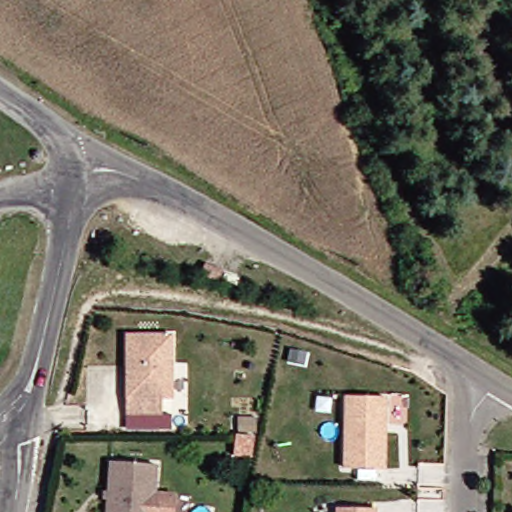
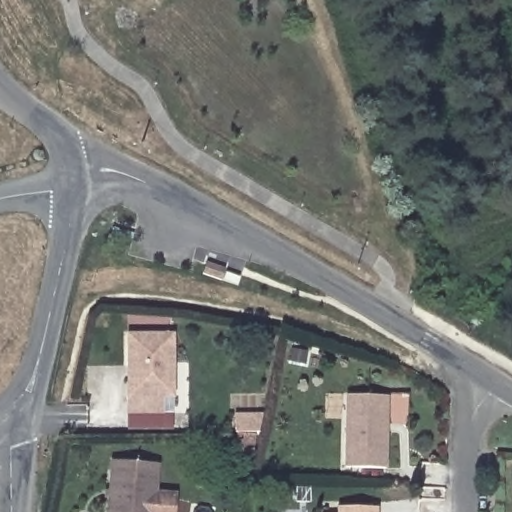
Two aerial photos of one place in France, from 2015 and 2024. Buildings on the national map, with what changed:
unchanged [(221,268),(202,262),(206,251),(225,258),(221,268)]
unchanged [(159,412),(125,412),(127,334),(172,336),(170,397),(170,413),(159,412)]
unchanged [(383,399),(381,470),(342,468),(343,398),(383,399)]
unchanged [(155,466),(153,493),(173,495),(172,512),(106,512),(110,462),(155,466)]
unchanged [(373,508),(373,512),(333,512),(333,507),(373,508)]

